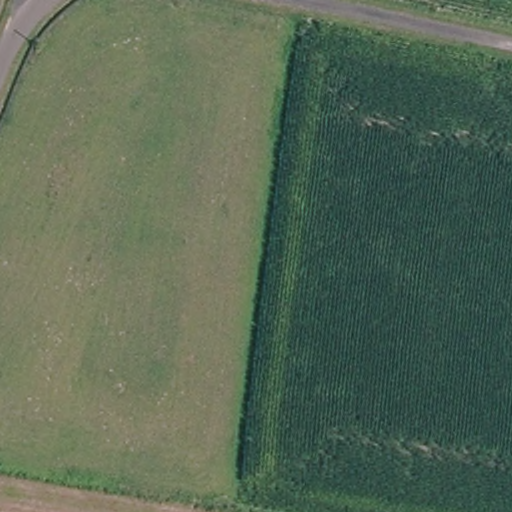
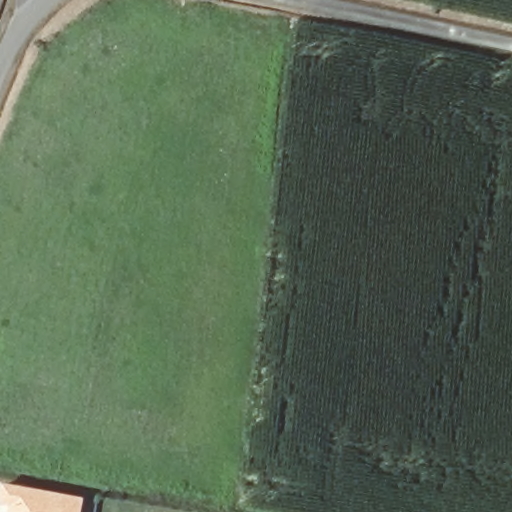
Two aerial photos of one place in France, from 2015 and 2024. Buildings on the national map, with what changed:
new [(85,497),(82,512),(6,512),(7,507),(0,505),(0,498),(3,483),(85,497)]

